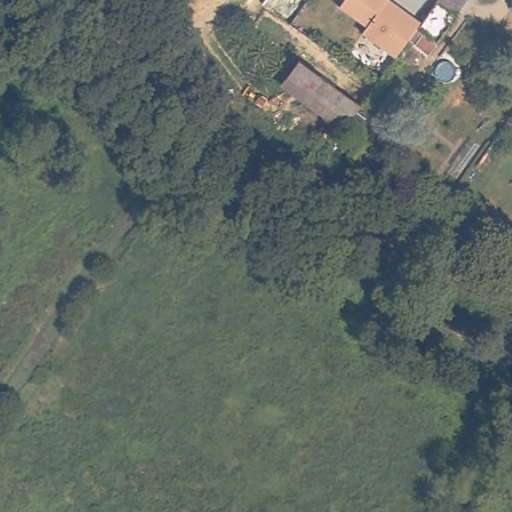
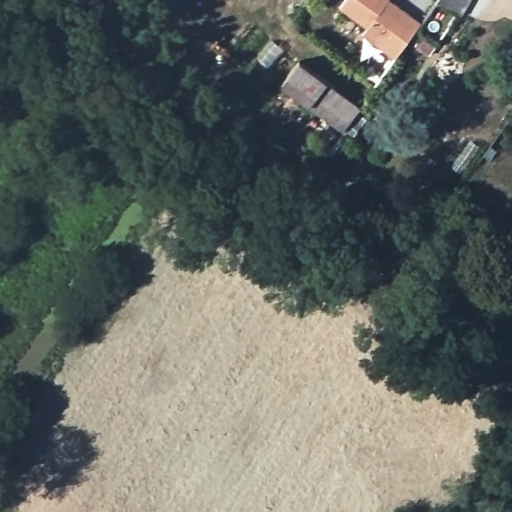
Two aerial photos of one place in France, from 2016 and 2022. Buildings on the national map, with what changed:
unchanged [(395,58),(362,32),(368,25),(341,4),(344,0),(392,0),(423,24),(395,58)]
unchanged [(443,0),(462,0),(458,8),(443,0)]
unchanged [(299,60),(361,105),(342,131),(281,85),(299,60)]

